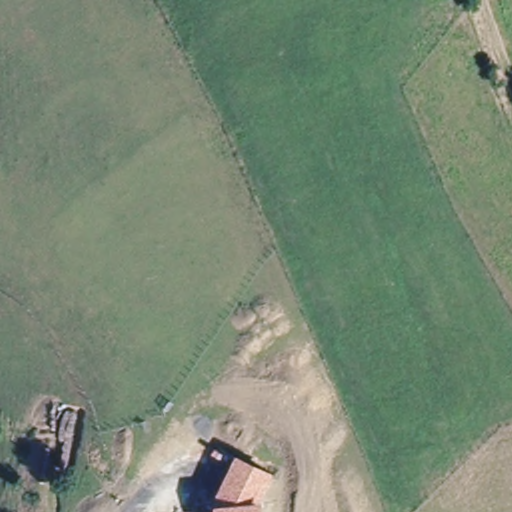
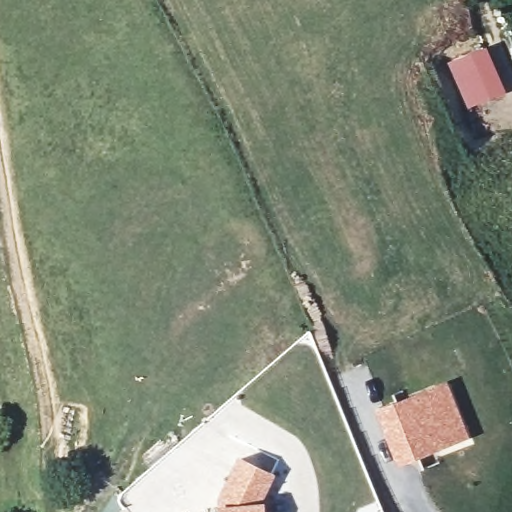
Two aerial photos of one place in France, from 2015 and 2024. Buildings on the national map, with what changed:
new [(506,94),(468,108),(448,63),(487,47),(506,94)]
new [(446,379),(470,437),(397,466),(373,409),(446,379)]
unchanged [(237,455),(275,472),(263,499),(264,512),(217,512),(216,506),(237,455)]

